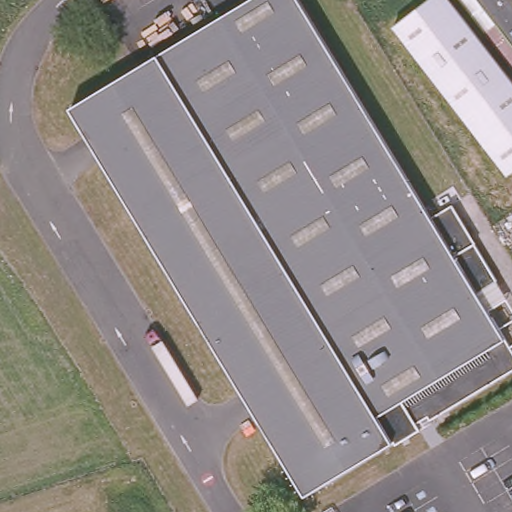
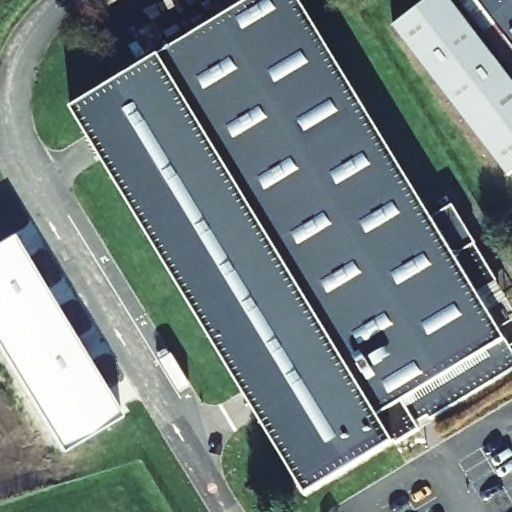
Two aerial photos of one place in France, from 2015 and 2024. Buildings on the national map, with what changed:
unchanged [(463,232),(493,282),(475,294),(512,354),(512,371),(307,495),(68,106),(248,0),(296,0),(445,243),(463,232)]
unchanged [(512,171),(507,175),(397,23),(427,0),(454,0),(512,77),(512,171)]
unchanged [(512,39),(483,0),(512,0),(512,39)]
new [(122,414),(63,451),(0,348),(0,242),(13,234),(122,414)]

